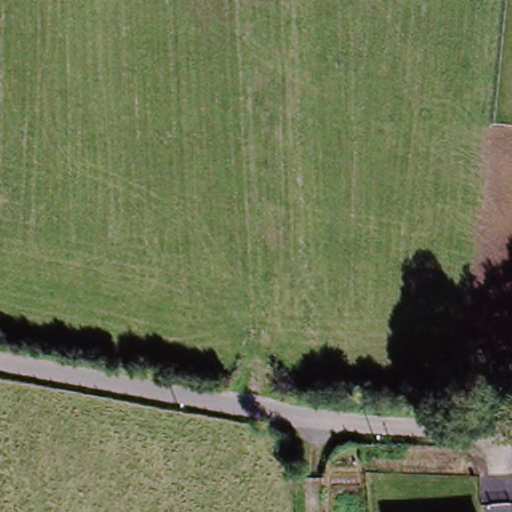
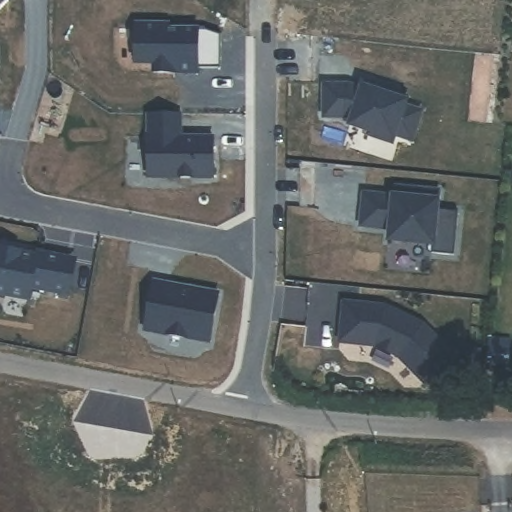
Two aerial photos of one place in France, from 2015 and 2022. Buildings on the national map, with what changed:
new [(0,0),(6,0),(0,6),(0,0)]
new [(221,70),(198,69),(198,74),(185,74),(185,70),(176,70),(176,74),(154,74),(154,63),(136,63),(136,26),(169,26),(169,31),(206,31),(221,36),(221,70)]
new [(405,107),(422,112),(413,141),(396,136),(393,144),(368,136),(369,132),(351,126),(352,121),(344,118),(324,118),(324,86),(349,86),(362,90),(363,88),(399,99),(401,95),(408,97),(405,107)]
new [(386,90),(401,95),(399,99),(384,95),(386,90)]
new [(180,138),(198,138),(214,138),(214,178),(149,178),(149,115),(180,115),(180,138)]
new [(395,187),(407,188),(406,198),(394,197),(395,187)]
new [(455,255),(433,253),(434,244),(389,240),(391,229),(361,227),(364,194),(406,198),(407,188),(439,191),(438,210),(459,212),(455,255)]
new [(31,302),(0,297),(0,257),(9,258),(0,256),(0,251),(9,253),(37,257),(38,254),(71,260),(65,296),(34,290),(31,302)]
new [(219,294),(210,343),(145,331),(154,283),(219,294)]
new [(453,355),(424,383),(400,357),(374,346),(340,343),(344,303),(386,307),(424,325),(453,355)]
new [(490,338),(512,340),(512,346),(511,362),(488,360),(490,338)]

